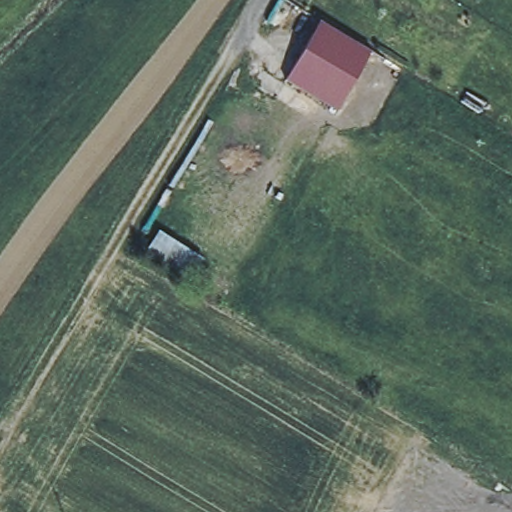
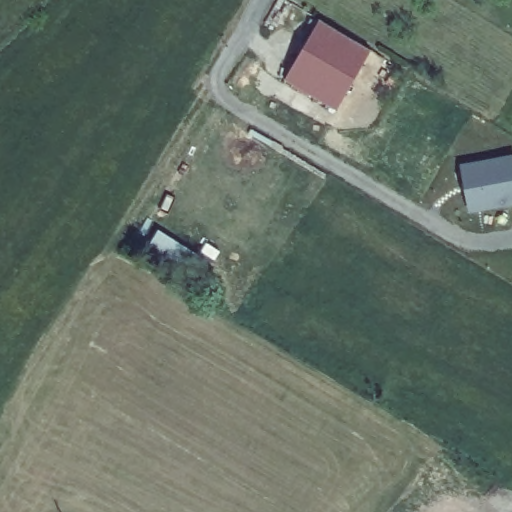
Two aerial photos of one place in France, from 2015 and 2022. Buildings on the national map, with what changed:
unchanged [(310,32),(318,19),(370,50),(362,63),(346,91),(345,92),(292,62),(293,60),(310,32)]
unchanged [(292,62),(345,92),(335,110),(282,79),(292,62)]
new [(512,201),(467,209),(460,165),(512,155),(512,201)]

